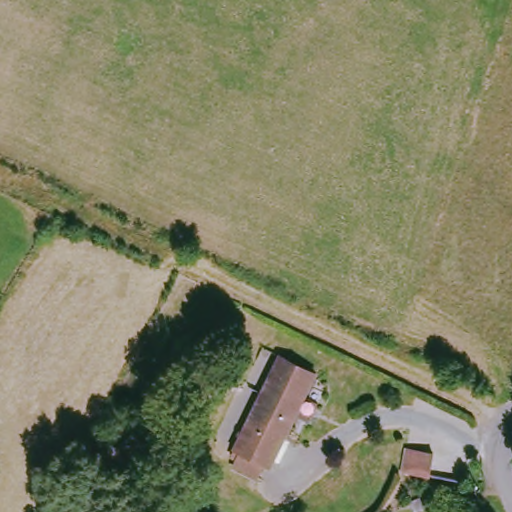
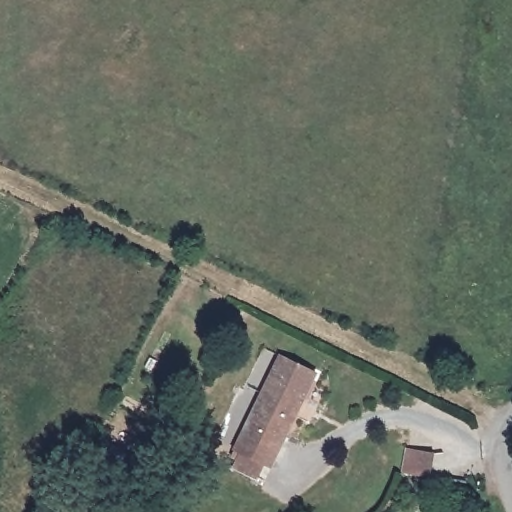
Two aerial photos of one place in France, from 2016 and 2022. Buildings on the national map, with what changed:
unchanged [(232,469),(236,460),(232,458),(235,453),(278,360),(313,375),(270,469),(262,465),(255,480),(232,469)]
unchanged [(433,452),(429,475),(403,470),(407,447),(433,452)]
unchanged [(90,499),(90,511),(70,511),(70,500),(90,499)]

